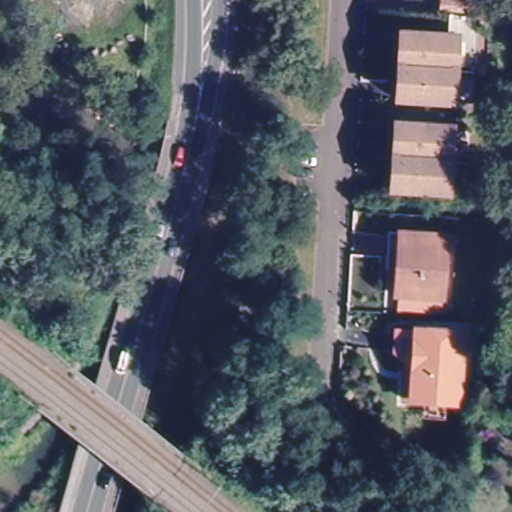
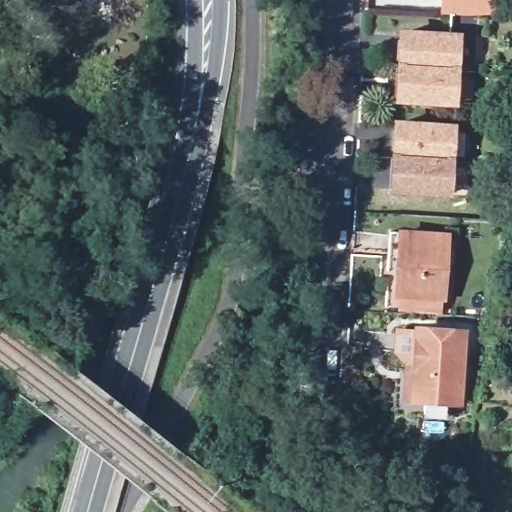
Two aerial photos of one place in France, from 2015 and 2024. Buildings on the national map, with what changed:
unchanged [(436,0),(444,0),(465,1),(465,18),(435,16),(436,0)]
unchanged [(452,41),(447,107),(394,103),(399,36),(452,41)]
unchanged [(450,131),(445,196),(392,192),(397,127),(450,131)]
unchanged [(445,239),(441,297),(395,294),(399,234),(445,239)]
unchanged [(445,408),(406,408),(406,386),(406,375),(391,362),(392,343),(407,343),(418,343),(446,344),(445,408)]

